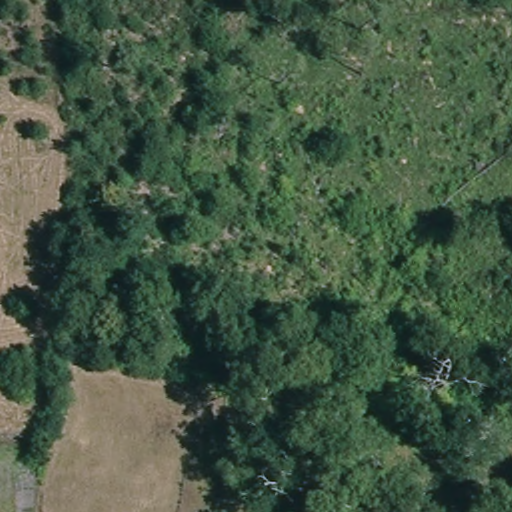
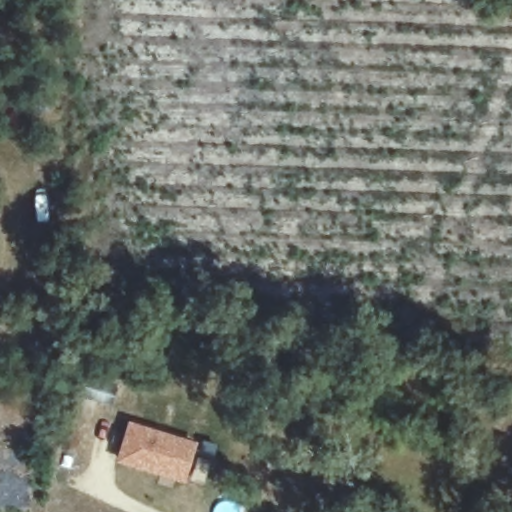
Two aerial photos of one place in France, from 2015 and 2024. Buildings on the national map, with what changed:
new [(186,483),(117,460),(129,420),(198,441),(186,483)]

